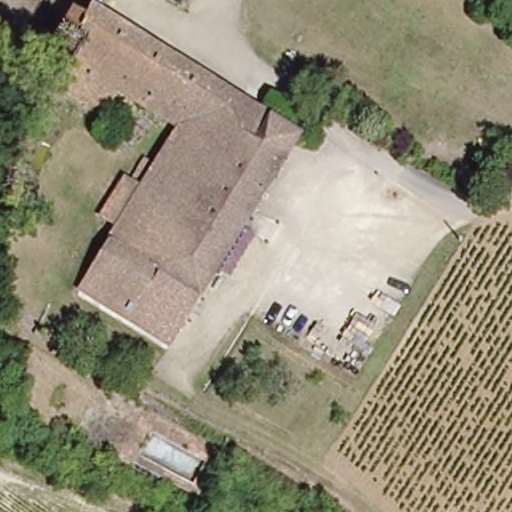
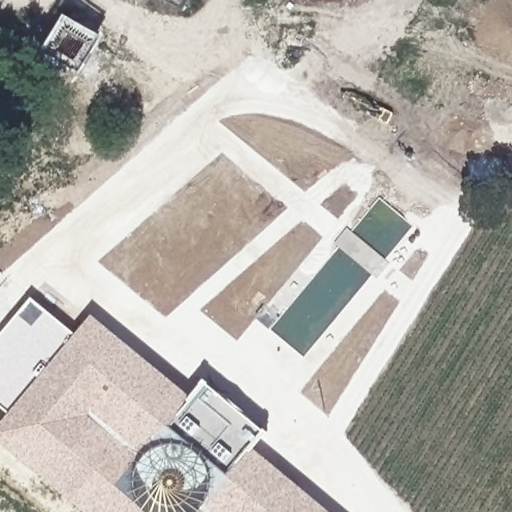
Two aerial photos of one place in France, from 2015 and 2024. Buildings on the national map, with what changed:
demolished [(147,170),(172,131),(110,89),(102,102),(82,105),(50,82),(65,59),(50,48),(76,8),(89,17),(101,0),(104,2),(106,0),(122,0),(114,13),(307,143),(177,333),(113,290),(81,269),(105,235),(129,199),(116,190),(133,163),(147,170)]
unchanged [(145,0),(183,0),(173,16),(145,0)]
new [(80,76),(42,53),(66,13),(104,36),(80,76)]
demolished [(163,355),(67,291),(81,269),(113,290),(177,333),(163,355)]
new [(0,438),(0,423),(11,410),(0,400),(0,337),(33,298),(75,333),(92,313),(191,395),(203,379),(265,432),(252,446),(332,512),(88,512),(0,438)]

